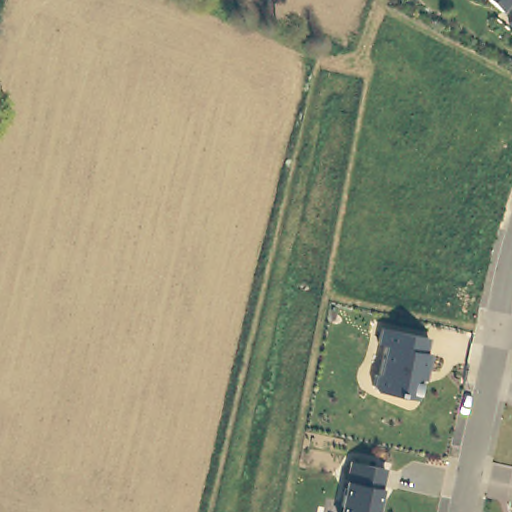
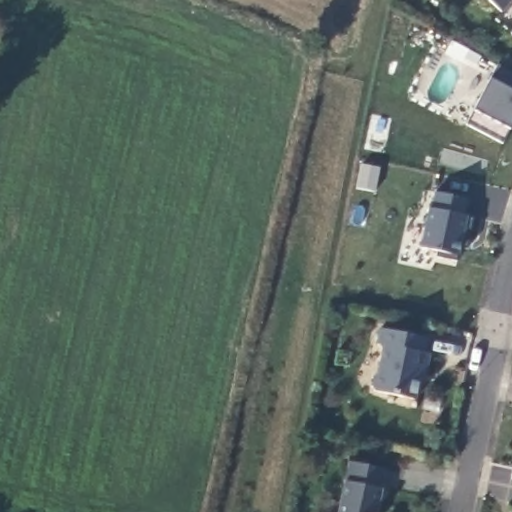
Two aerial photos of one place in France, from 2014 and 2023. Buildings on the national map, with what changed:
unchanged [(478,0),(502,0),(492,12),(478,0)]
unchanged [(512,0),(512,1),(511,0),(512,0)]
unchanged [(512,20),(512,42),(501,33),(512,20)]
new [(502,143),(465,125),(474,110),(490,79),(497,64),(512,72),(512,126),(511,128),(502,143)]
new [(467,217),(474,217),(467,247),(460,246),(457,261),(436,257),(438,250),(421,248),(429,207),(433,192),(469,199),(467,217)]
unchanged [(372,332),(419,341),(416,356),(421,357),(418,375),(413,374),(407,402),(367,395),(364,390),(366,378),(371,376),(376,349),(369,347),(372,332)]
unchanged [(344,466),(379,473),(371,512),(336,512),(344,466)]

